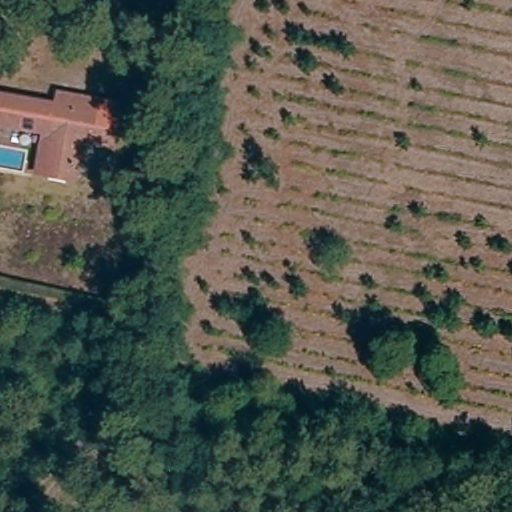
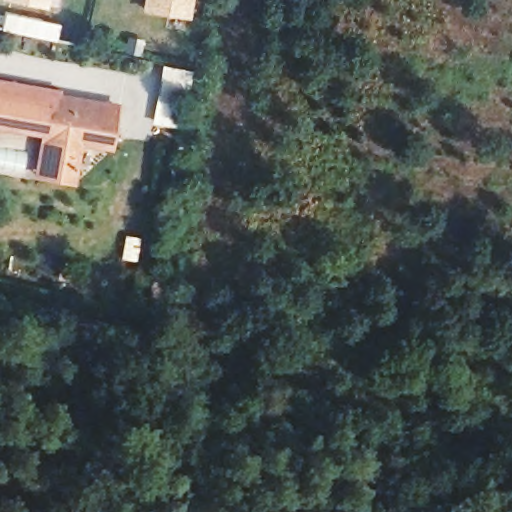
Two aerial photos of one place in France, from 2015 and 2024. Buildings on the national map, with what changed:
new [(11,0),(49,0),(47,8),(11,0)]
new [(191,19),(142,10),(144,0),(194,0),(191,19)]
unchanged [(55,96),(120,108),(113,157),(84,151),(77,186),(33,176),(39,143),(0,135),(0,99),(54,108),(55,96)]

